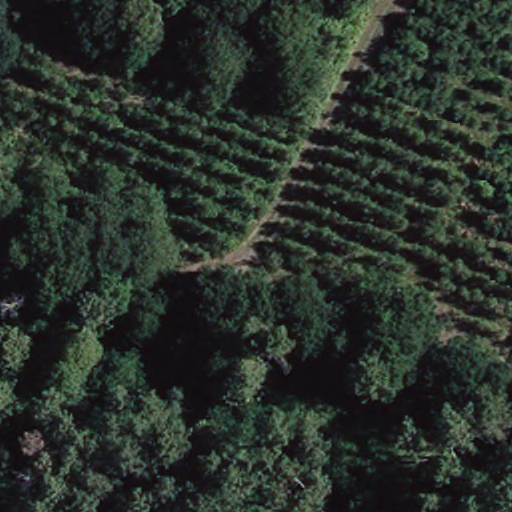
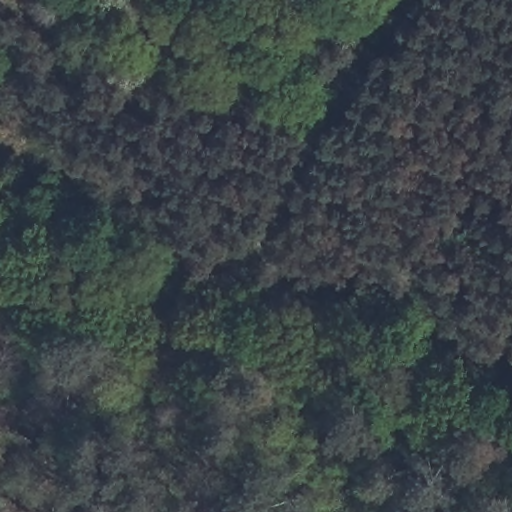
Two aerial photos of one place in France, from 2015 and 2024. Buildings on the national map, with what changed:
[]

